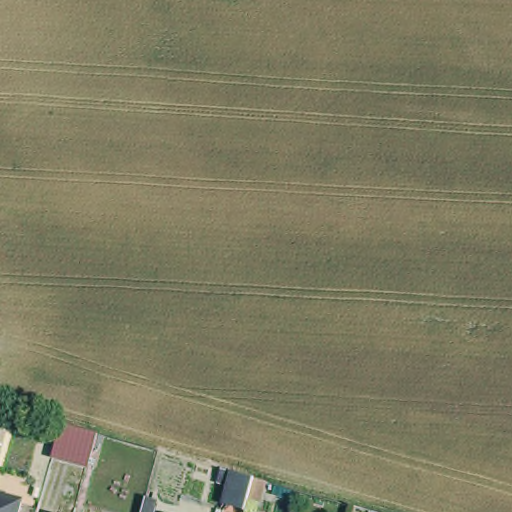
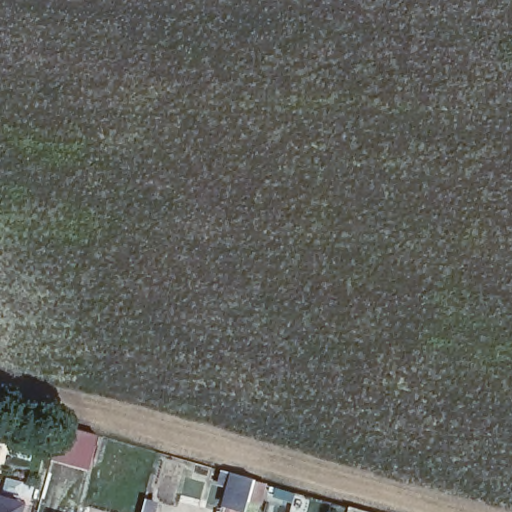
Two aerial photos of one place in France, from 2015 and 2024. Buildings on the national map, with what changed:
unchanged [(63,425),(98,435),(89,466),(54,456),(63,425)]
unchanged [(227,507),(232,486),(221,482),(224,470),(236,473),(256,479),(267,482),(262,504),(250,501),(247,512),(245,512),(227,507)]
unchanged [(22,512),(0,512),(0,487),(27,494),(22,512)]
unchanged [(55,509),(66,512),(54,512),(55,509)]

